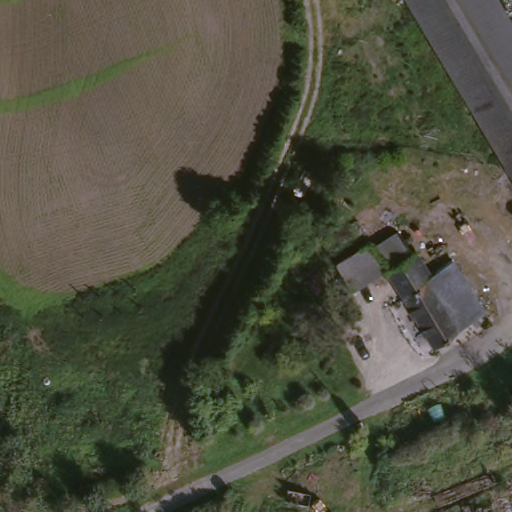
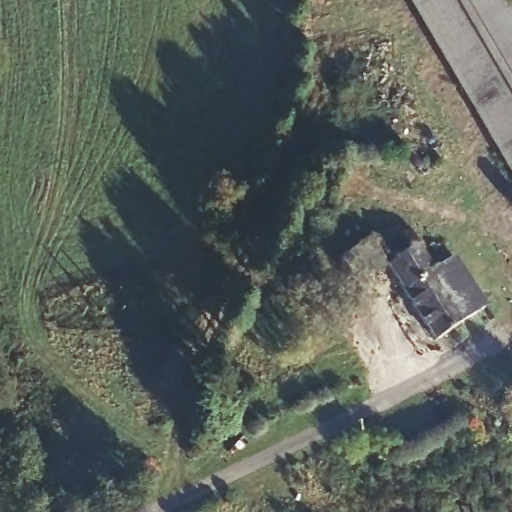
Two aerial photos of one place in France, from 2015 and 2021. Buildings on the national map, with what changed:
unchanged [(512,23),(512,182),(410,0),(499,0),(512,23)]
unchanged [(426,270),(453,258),(478,309),(452,321),(455,328),(422,342),(380,263),(349,278),(336,252),(402,221),(426,270)]

